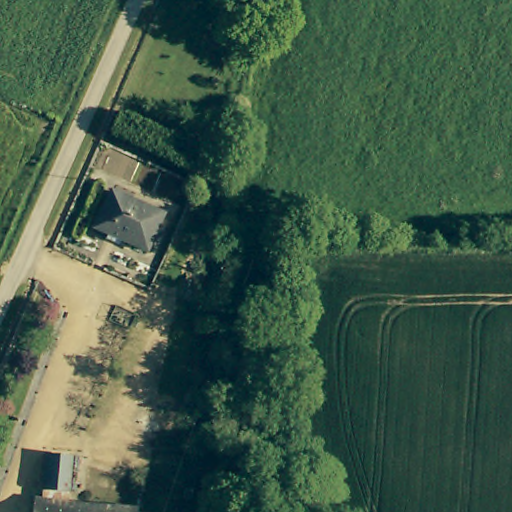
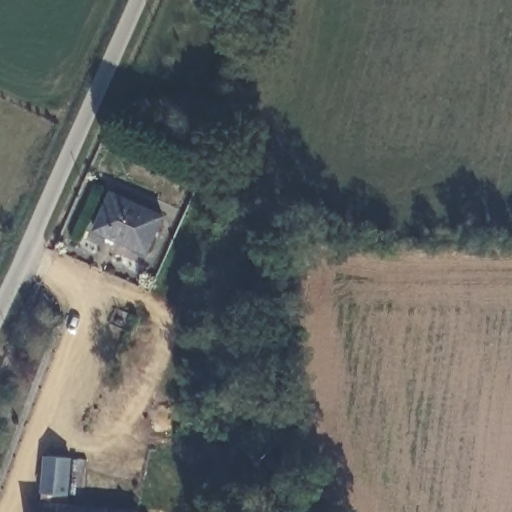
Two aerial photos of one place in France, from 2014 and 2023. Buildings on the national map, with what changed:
unchanged [(161,210),(143,255),(94,232),(113,189),(161,210)]
unchanged [(70,457),(67,493),(63,493),(62,506),(109,507),(136,508),(136,512),(34,512),(35,505),(40,504),(47,456),(66,457),(70,457)]

